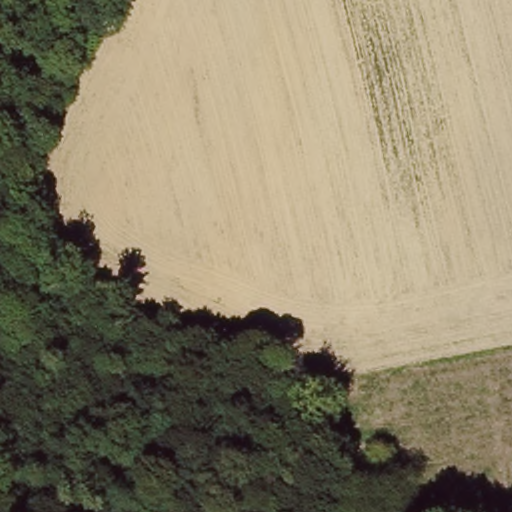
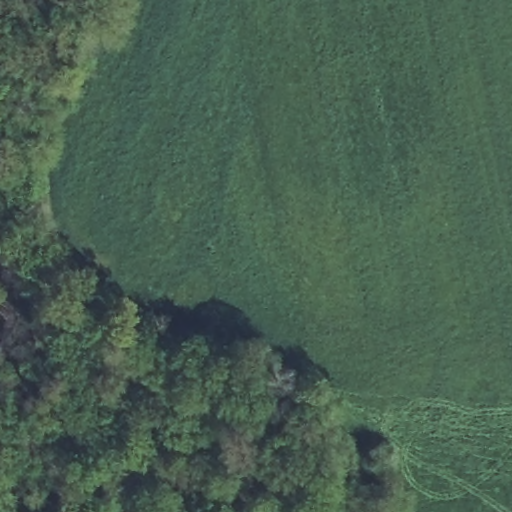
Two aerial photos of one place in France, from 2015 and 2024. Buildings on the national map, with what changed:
[]

